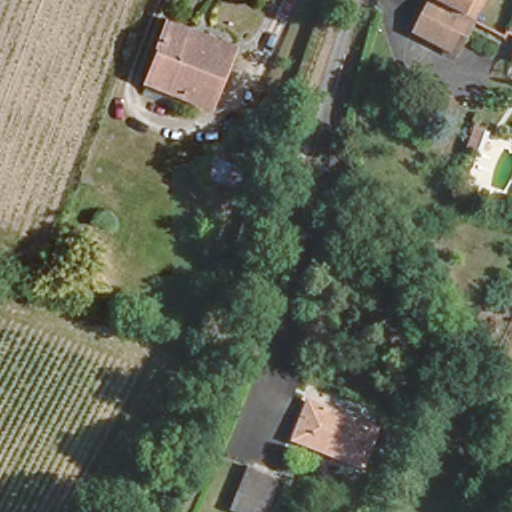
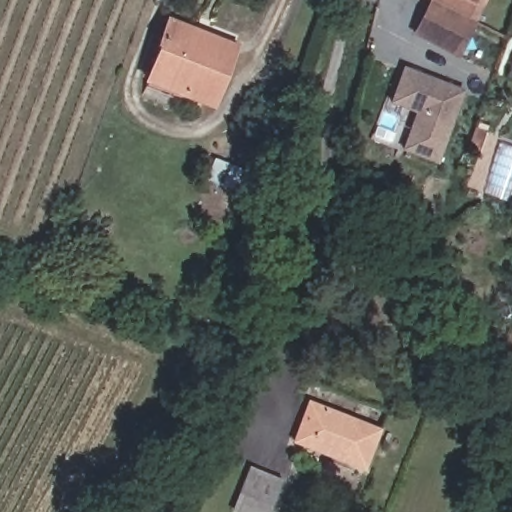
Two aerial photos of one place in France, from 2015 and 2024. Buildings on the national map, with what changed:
unchanged [(411,35),(425,2),(420,0),(488,0),(480,19),(461,57),(411,35)]
unchanged [(146,81),(169,17),(233,39),(210,104),(146,81)]
unchanged [(507,62),(512,45),(512,63),(507,62)]
new [(402,67),(464,90),(436,163),(400,150),(413,112),(388,102),(402,67)]
unchanged [(468,167),(475,147),(485,150),(479,170),(468,167)]
unchanged [(377,426),(362,462),(299,438),(292,436),(307,398),(314,401),(377,426)]
unchanged [(262,512),(238,512),(229,509),(245,464),(277,476),(262,512)]

